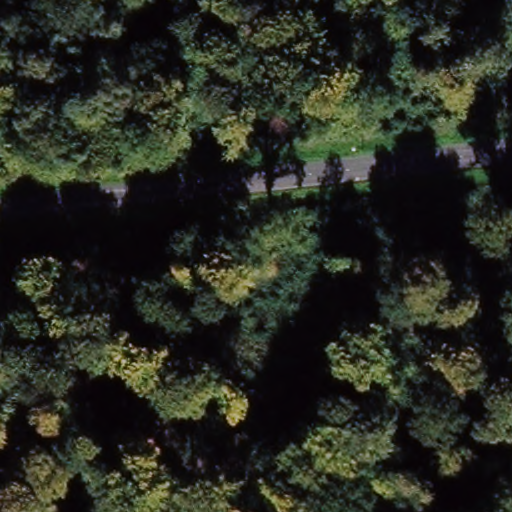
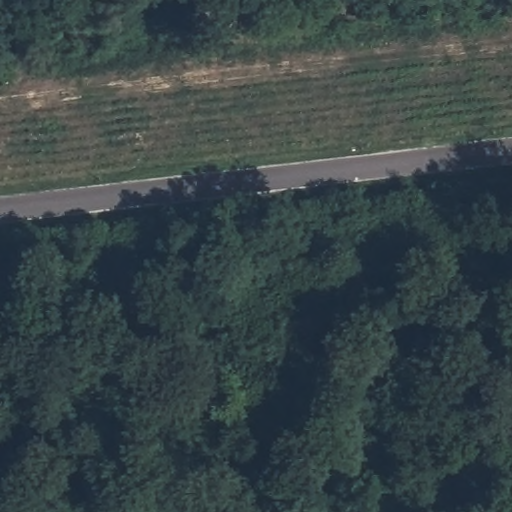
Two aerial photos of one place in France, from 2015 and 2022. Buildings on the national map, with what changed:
[]

